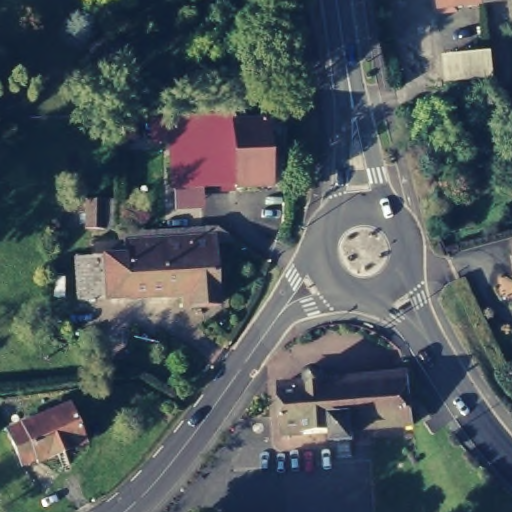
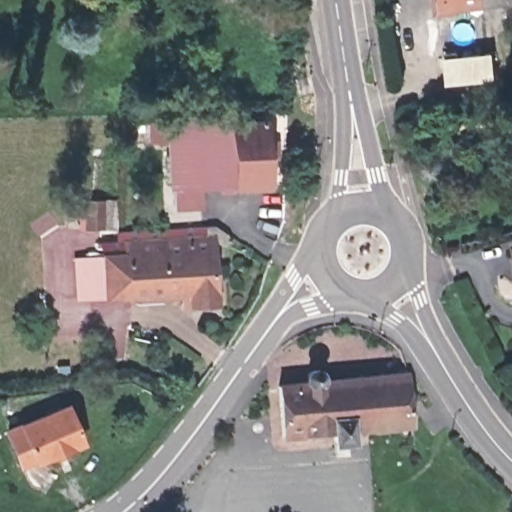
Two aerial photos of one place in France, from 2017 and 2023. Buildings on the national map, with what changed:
unchanged [(505,45),(508,69),(462,74),(459,50),(505,45)]
unchanged [(199,205),(199,221),(175,222),(172,191),(168,140),(148,142),(147,119),(230,116),(230,122),(263,123),(264,146),(274,145),(274,157),(264,158),(265,189),(193,189),(195,205),(199,205)]
unchanged [(85,263),(106,262),(127,261),(127,247),(127,235),(210,229),(214,230),(227,238),(227,242),(213,246),(217,306),(192,307),(185,306),(182,297),(108,302),(88,303),(80,304),(77,263),(85,263)]
unchanged [(403,418),(345,423),(345,432),(326,433),(324,425),(275,427),(273,380),(297,377),(303,369),(310,367),(315,371),(320,375),(400,368),(403,418)]
unchanged [(77,402),(92,441),(47,457),(42,448),(30,452),(20,425),(77,402)]

